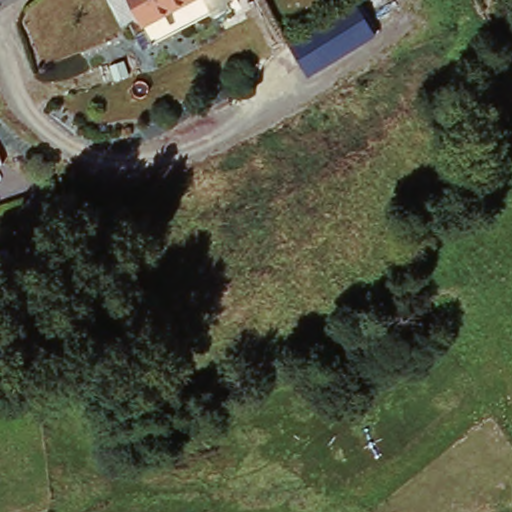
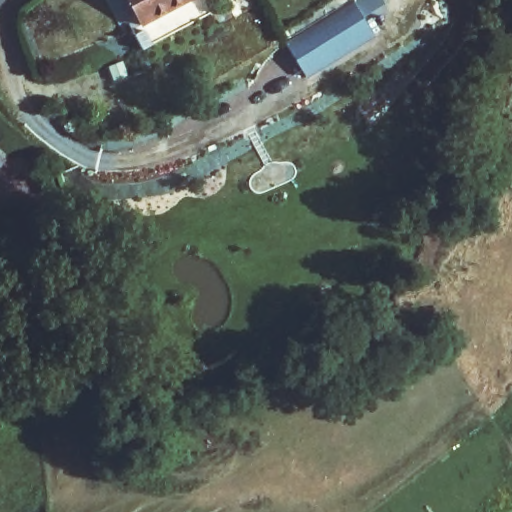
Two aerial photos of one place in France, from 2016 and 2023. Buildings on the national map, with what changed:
unchanged [(144,25),(132,0),(192,0),(144,25)]

